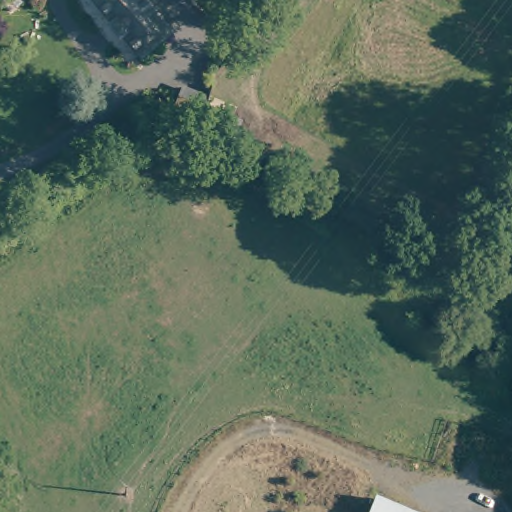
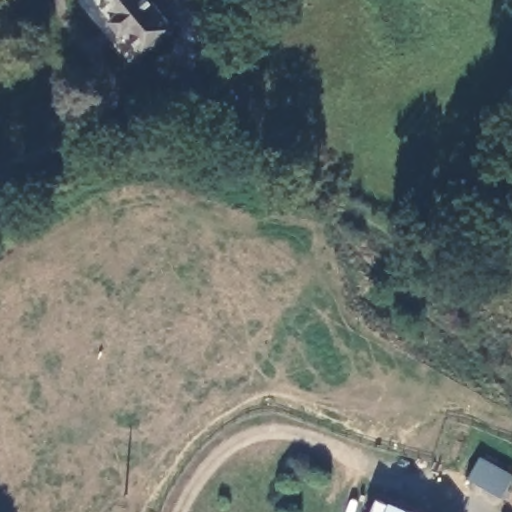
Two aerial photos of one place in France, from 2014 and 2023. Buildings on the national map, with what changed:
unchanged [(179,32),(147,57),(127,32),(124,34),(117,24),(120,21),(105,0),(155,0),(179,32)]
new [(479,458),(512,478),(512,482),(501,496),(471,477),(479,458)]
unchanged [(374,512),(380,497),(417,512),(374,512)]

